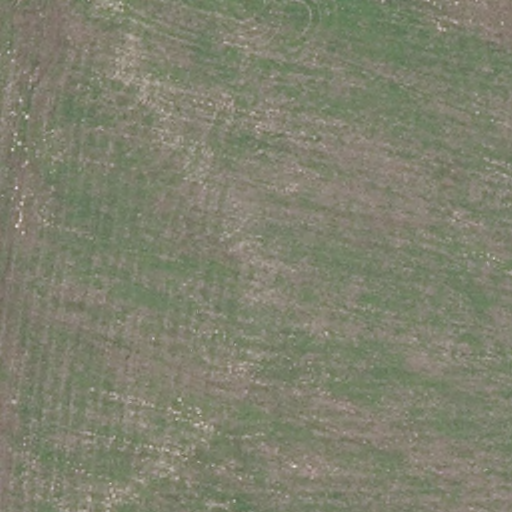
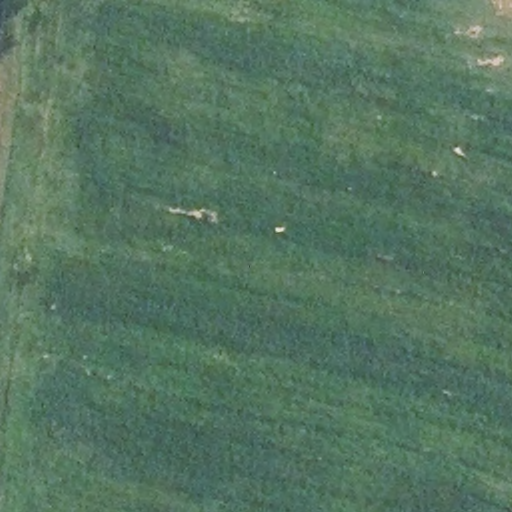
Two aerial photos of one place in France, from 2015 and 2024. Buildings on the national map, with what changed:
[]

